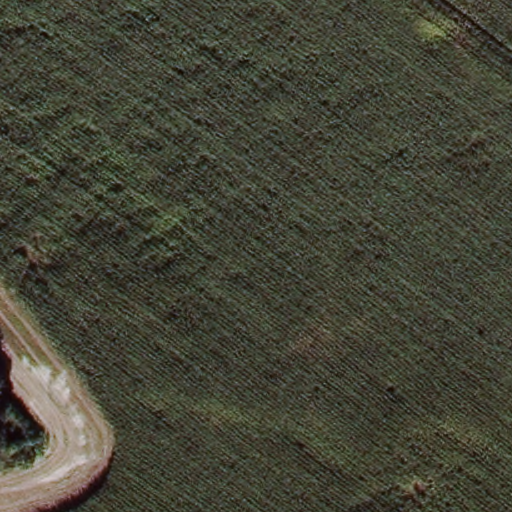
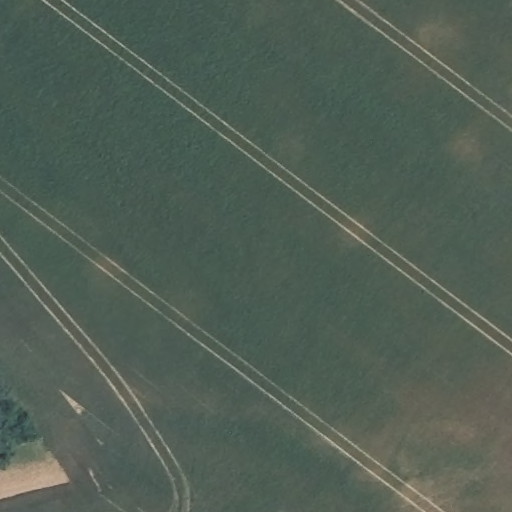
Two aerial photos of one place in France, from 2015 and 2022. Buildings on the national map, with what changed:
[]

